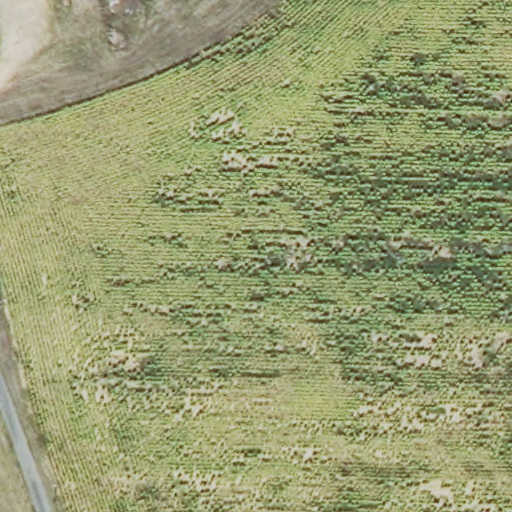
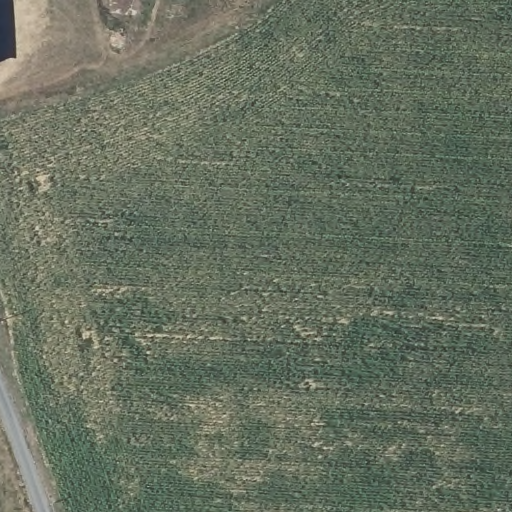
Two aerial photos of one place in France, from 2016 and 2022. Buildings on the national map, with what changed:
[]

